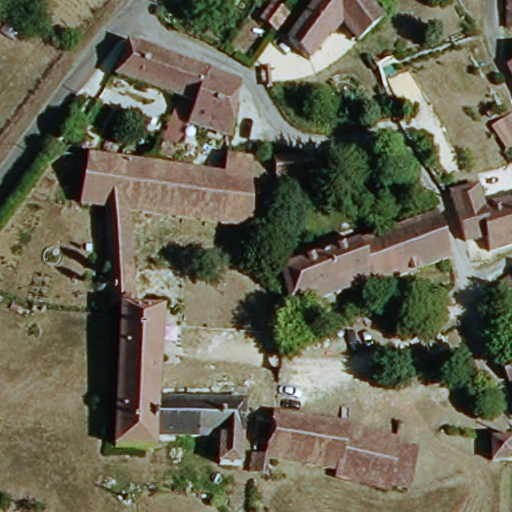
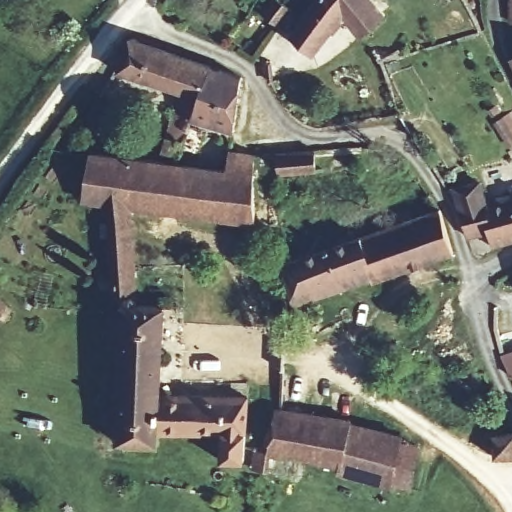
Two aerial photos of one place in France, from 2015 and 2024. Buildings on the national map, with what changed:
unchanged [(277,21),(262,8),(268,0),(286,0),(291,3),(277,21)]
unchanged [(387,15),(384,18),(362,36),(341,16),(310,55),(289,36),(314,0),(374,0),(387,15)]
unchanged [(510,16),(510,0),(512,0),(512,17),(510,16)]
unchanged [(181,138),(175,154),(160,150),(175,107),(170,105),(176,87),(119,67),(131,32),(212,61),(189,115),(181,138)]
unchanged [(506,60),(512,57),(512,73),(506,60)]
unchanged [(234,128),(189,115),(212,61),(241,73),(234,128)]
unchanged [(512,103),(512,136),(497,113),(512,103)]
unchanged [(174,158),(175,155),(175,154),(181,138),(230,147),(228,167),(174,158)]
unchanged [(273,149),(307,146),(309,167),(275,171),(273,149)]
unchanged [(251,174),(250,221),(129,205),(104,201),(81,198),(90,147),(120,149),(174,158),(228,167),(230,147),(238,149),(254,150),(251,174)]
unchanged [(480,179),(484,185),(486,197),(512,195),(512,240),(489,246),(485,232),(465,237),(454,187),(480,179)]
unchanged [(129,205),(132,263),(109,262),(104,201),(129,205)]
unchanged [(277,258),(316,246),(346,234),(397,216),(395,208),(404,204),(407,213),(435,204),(450,248),(370,278),(369,275),(292,302),(288,292),(277,258)]
unchanged [(136,295),(134,295),(134,303),(163,304),(160,360),(159,394),(156,432),(154,442),(115,441),(119,339),(121,301),(112,301),(111,288),(104,288),(100,286),(97,280),(99,273),(103,270),(109,270),(109,262),(132,263),(136,295)]
unchanged [(498,350),(512,347),(512,367),(507,368),(498,350)]
unchanged [(156,432),(159,394),(244,394),(240,458),(219,457),(219,446),(209,445),(209,431),(156,432)]
unchanged [(389,477),(388,481),(336,468),(337,462),(267,452),(265,466),(249,464),(250,447),(252,447),(256,410),(274,412),(275,405),(349,416),(348,421),(400,433),(399,439),(416,443),(407,481),(389,477)]
unchanged [(496,465),(495,454),(490,453),(488,432),(509,431),(512,431),(512,464),(496,465)]

